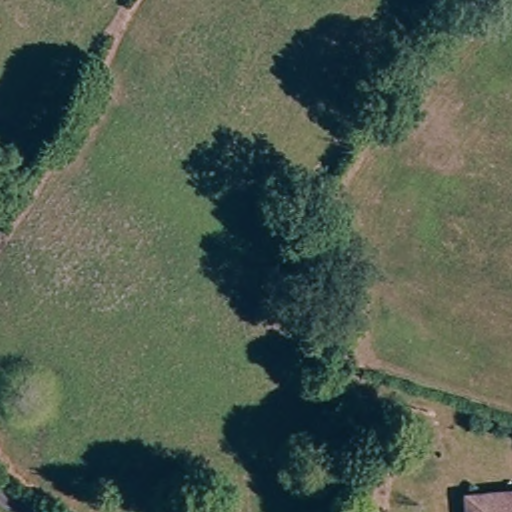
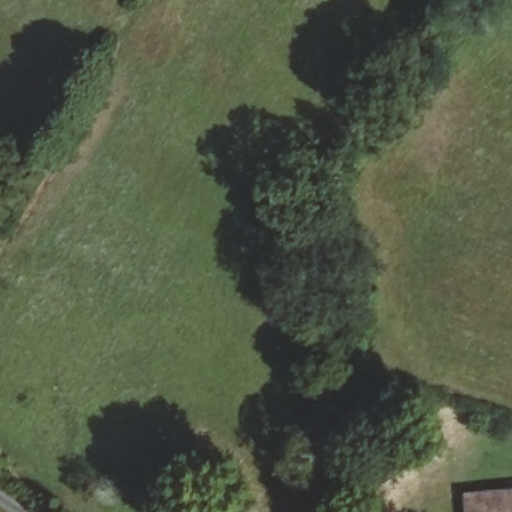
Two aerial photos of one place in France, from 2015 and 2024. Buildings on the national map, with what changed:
unchanged [(512,500),(512,512),(479,512),(478,506),(512,500)]

